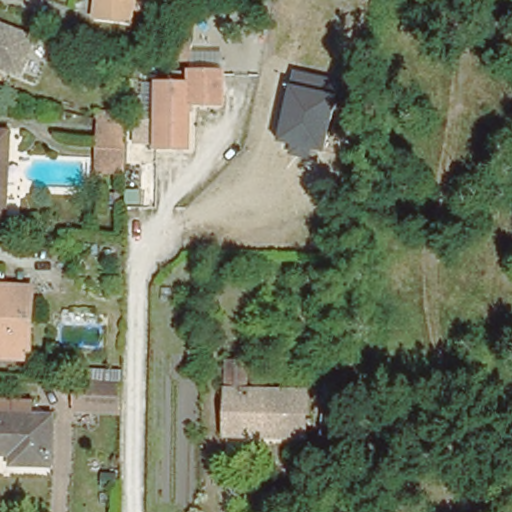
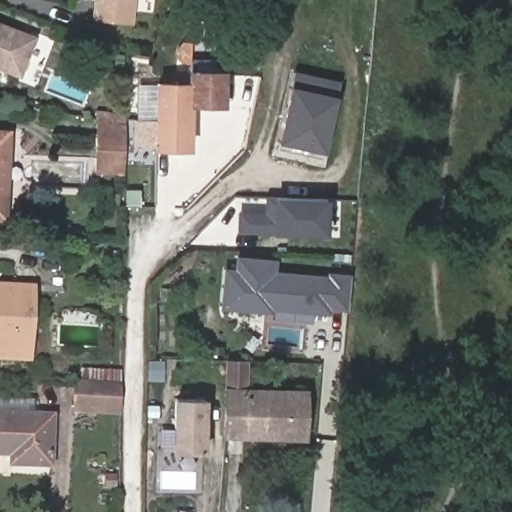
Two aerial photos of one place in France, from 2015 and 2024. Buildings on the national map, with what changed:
unchanged [(95,16),(97,0),(132,0),(130,21),(95,16)]
unchanged [(35,37),(21,75),(0,68),(0,24),(35,37)]
unchanged [(188,72),(219,70),(220,103),(194,104),(195,153),(155,152),(156,81),(192,80),(188,72)]
unchanged [(295,85),(298,71),(330,79),(327,92),(338,94),(326,152),(311,149),(309,159),(290,154),(292,145),(278,142),(289,84),(295,85)]
unchanged [(96,120),(123,121),(122,168),(95,166),(96,120)]
unchanged [(0,218),(0,132),(8,132),(4,218),(0,218)]
new [(264,211),(264,197),(273,196),(329,199),(328,235),(274,233),(237,232),(237,211),(264,211)]
new [(231,267),(242,268),(243,258),(278,261),(277,272),(332,277),(333,274),(354,275),(351,306),(335,304),(335,309),(277,304),(277,308),(228,304),(231,267)]
unchanged [(31,291),(30,363),(0,361),(0,290),(31,291)]
unchanged [(244,389),(306,392),(304,438),(227,436),(228,388),(229,363),(245,363),(244,389)]
unchanged [(339,374),(332,448),(318,447),(325,373),(339,374)]
unchanged [(76,386),(81,386),(82,374),(119,375),(120,388),(122,388),(122,417),(74,415),(76,386)]
new [(184,398),(213,399),(212,452),(183,451),(184,398)]
unchanged [(38,407),(38,420),(57,421),(56,469),(16,468),(16,459),(0,458),(0,406),(38,407)]
unchanged [(116,474),(116,484),(105,483),(106,474),(116,474)]

